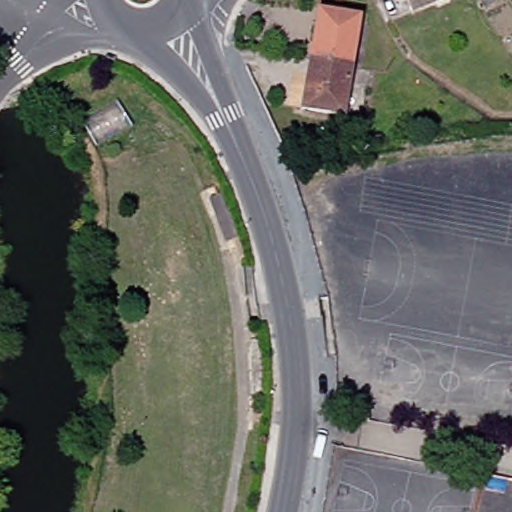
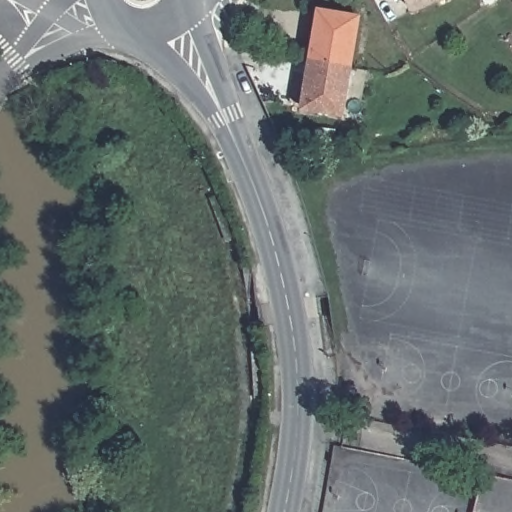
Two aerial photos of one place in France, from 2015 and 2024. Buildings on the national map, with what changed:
unchanged [(402,0),(433,0),(407,11),(402,0)]
unchanged [(310,11),(350,16),(342,67),(302,61),(310,11)]
unchanged [(334,115),(294,109),(302,61),(342,67),(334,115)]

